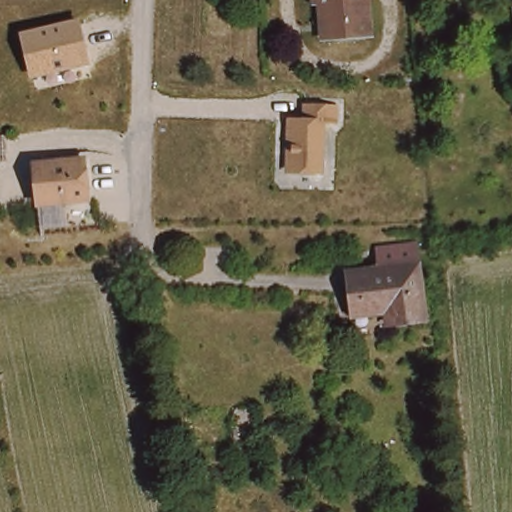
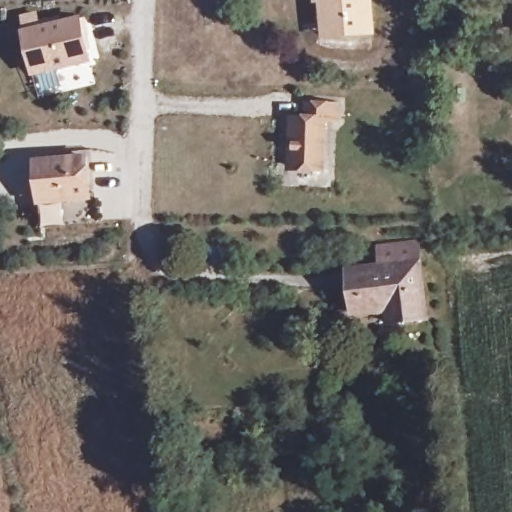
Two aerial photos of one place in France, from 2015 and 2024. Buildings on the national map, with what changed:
unchanged [(360,34),(322,38),(317,1),(302,3),(302,0),(356,0),(360,34)]
unchanged [(95,64),(35,79),(21,31),(83,17),(95,64)]
unchanged [(307,104),(340,106),(338,124),(326,123),(322,171),(295,171),(295,143),(291,143),(292,120),(306,120),(307,104)]
unchanged [(99,202),(49,207),(45,166),(95,161),(99,202)]
unchanged [(392,318),(390,307),(359,311),(353,268),(386,263),(383,241),(419,239),(432,311),(392,318)]

